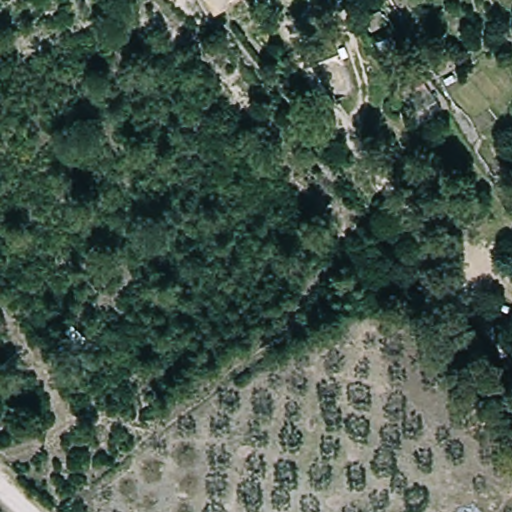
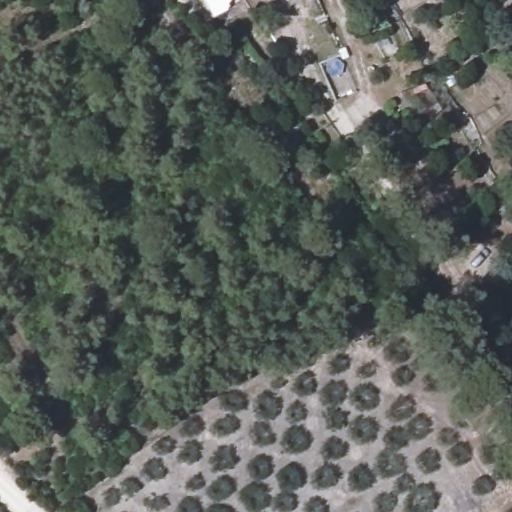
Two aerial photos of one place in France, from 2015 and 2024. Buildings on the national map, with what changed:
unchanged [(495,415),(475,431),(463,415),(485,401),(495,415)]

